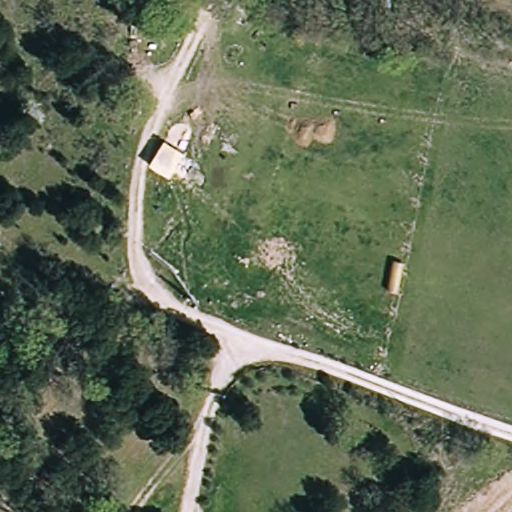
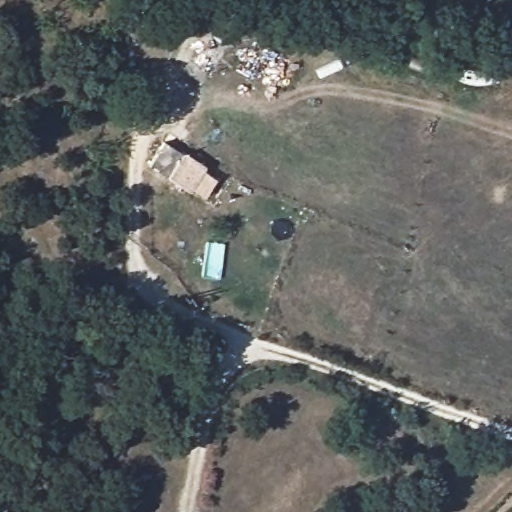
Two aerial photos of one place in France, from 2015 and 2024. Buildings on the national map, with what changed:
new [(165,141),(207,166),(204,171),(208,172),(206,174),(216,180),(204,199),(149,165),(165,141)]

